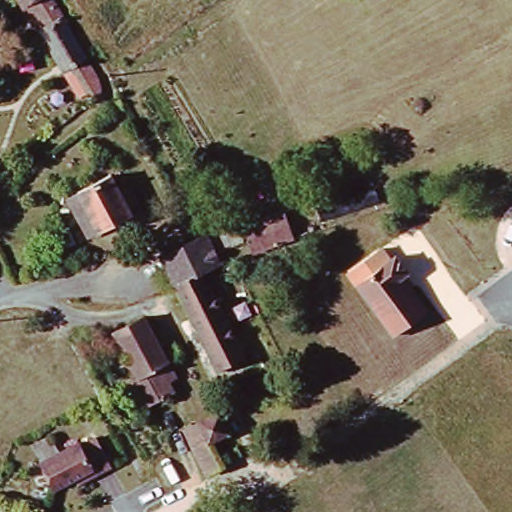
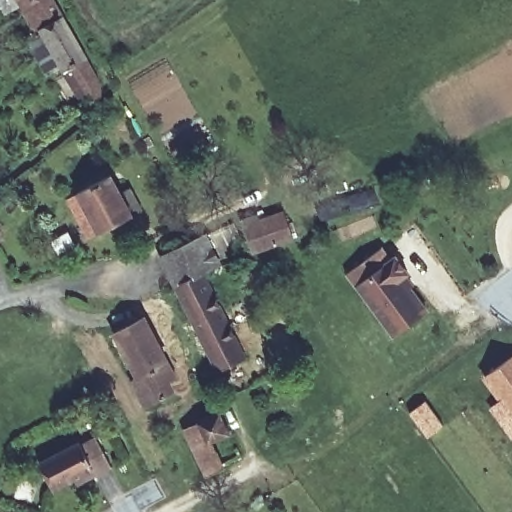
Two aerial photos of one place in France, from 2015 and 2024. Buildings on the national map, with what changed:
unchanged [(94,100),(92,98),(71,61),(59,68),(28,19),(33,16),(25,3),(17,8),(13,0),(52,0),(64,20),(81,51),(95,76),(100,91),(100,96),(94,100)]
unchanged [(102,179),(112,200),(122,195),(133,216),(90,238),(68,196),(102,179)]
unchanged [(240,223),(264,214),(278,209),(280,216),(290,238),(272,245),(268,247),(251,253),(240,223)]
unchanged [(218,263),(200,271),(172,284),(158,258),(230,223),(240,241),(213,255),(218,263)]
unchanged [(396,255),(409,274),(403,279),(427,314),(392,337),(355,287),(345,274),(382,248),(390,259),(396,255)]
unchanged [(244,359),(215,372),(172,284),(200,271),(244,359)]
unchanged [(135,382),(140,379),(115,333),(147,317),(172,362),(180,378),(172,383),(177,391),(158,402),(150,407),(135,382)]
new [(512,438),(511,439),(488,407),(497,400),(481,377),(512,355),(512,438)]
new [(425,400),(443,426),(427,438),(408,412),(425,400)]
unchanged [(179,432),(217,413),(227,433),(208,442),(220,467),(202,477),(179,432)]
unchanged [(79,444),(95,436),(110,464),(78,483),(75,478),(53,490),(38,462),(77,441),(79,444)]

